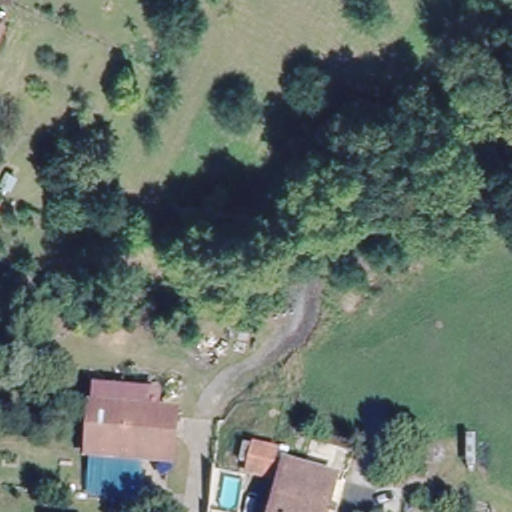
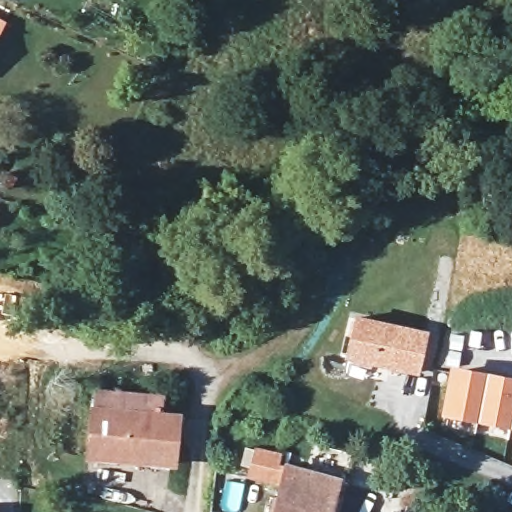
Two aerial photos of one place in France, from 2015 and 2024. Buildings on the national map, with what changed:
unchanged [(0,21),(2,22),(0,27),(0,21)]
new [(418,376),(343,360),(354,315),(428,330),(418,376)]
new [(440,416),(449,366),(512,378),(512,430),(440,416)]
unchanged [(94,420),(95,402),(161,407),(160,426),(94,420)]
unchanged [(94,420),(160,426),(178,427),(174,475),(86,467),(91,420),(94,420)]
unchanged [(278,462),(335,476),(326,512),(268,512),(277,478),(248,471),(255,445),(281,451),(278,462)]
unchanged [(403,461),(401,481),(382,478),(385,460),(403,461)]

